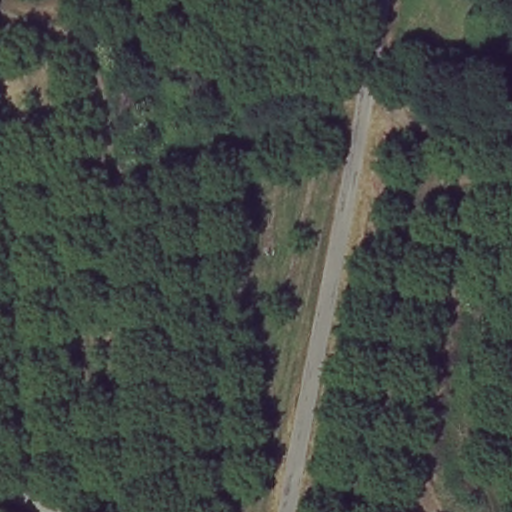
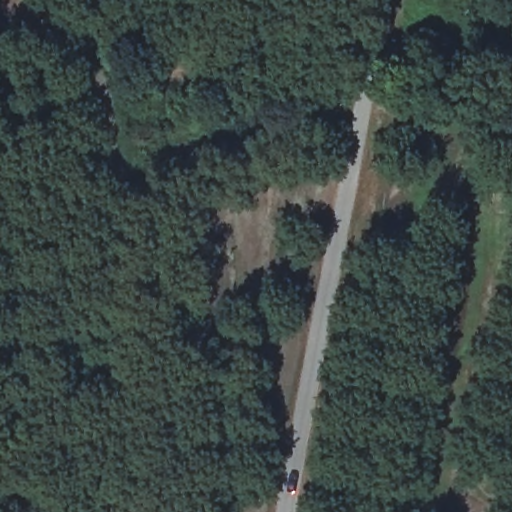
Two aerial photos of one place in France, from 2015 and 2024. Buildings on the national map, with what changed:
unchanged [(126,101),(142,99),(159,97),(185,94),(187,128),(165,131),(146,133),(129,135),(126,101)]

